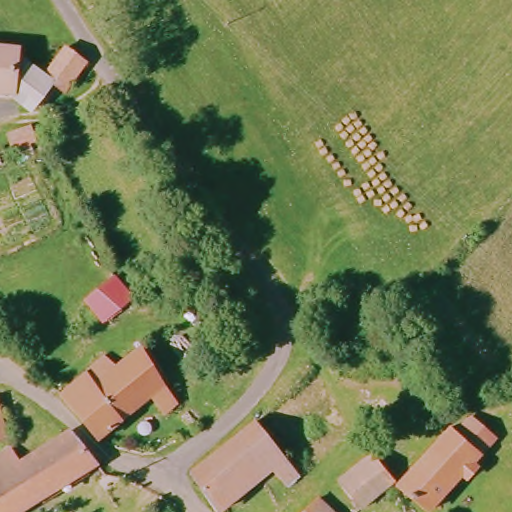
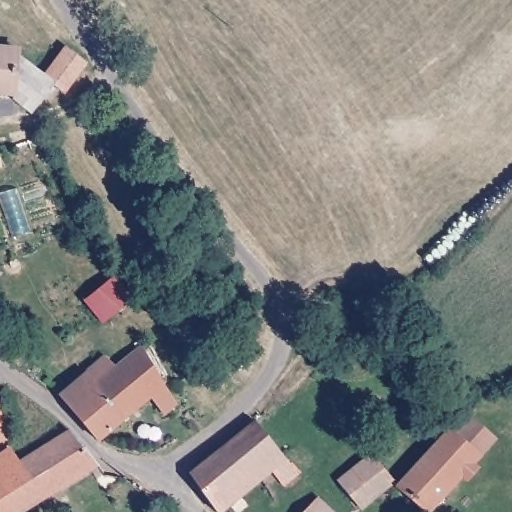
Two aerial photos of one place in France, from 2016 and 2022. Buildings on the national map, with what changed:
unchanged [(17,58),(45,77),(67,48),(88,64),(64,96),(53,89),(35,112),(12,95),(0,94),(0,50),(17,52),(17,58)]
unchanged [(15,151),(40,142),(46,157),(21,167),(15,151)]
unchanged [(105,323),(85,303),(110,281),(130,302),(105,323)]
unchanged [(170,416),(159,396),(102,445),(63,402),(110,363),(120,375),(147,355),(181,407),(170,416)]
unchanged [(0,444),(0,410),(8,441),(0,444)]
unchanged [(460,477),(428,512),(427,512),(397,483),(453,424),(480,455),(460,477)]
unchanged [(291,486),(275,468),(223,512),(219,512),(214,506),(196,477),(260,426),(303,476),(291,486)]
unchanged [(100,463),(82,476),(86,483),(74,491),(68,482),(39,500),(22,468),(75,437),(100,463)]
unchanged [(19,512),(0,512),(0,460),(14,452),(22,468),(39,500),(19,512)]
unchanged [(388,483),(362,505),(342,477),(373,453),(392,480),(388,483)]
unchanged [(312,512),(322,502),(330,512),(312,512)]

